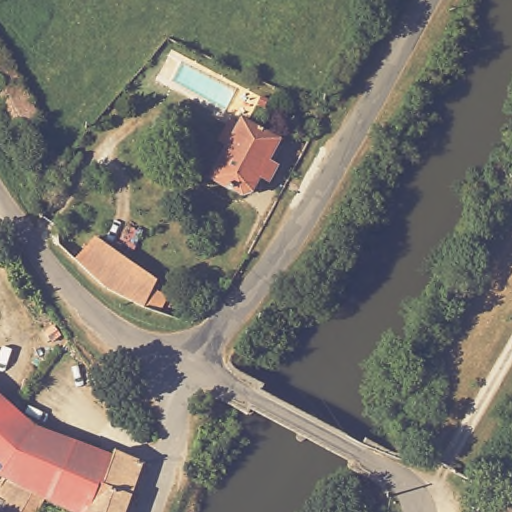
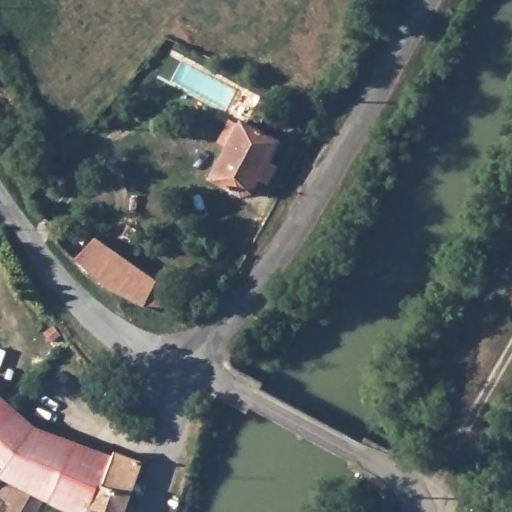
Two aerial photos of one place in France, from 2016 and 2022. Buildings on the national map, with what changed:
unchanged [(0,54),(36,113),(10,131),(0,115),(0,54)]
unchanged [(215,177),(243,123),(279,141),(253,195),(215,177)]
unchanged [(63,241),(81,230),(103,267),(143,285),(132,307),(88,285),(63,241)]
unchanged [(38,512),(0,512),(0,403),(27,427),(112,458),(115,452),(142,463),(125,512),(69,512),(41,502),(38,512)]

